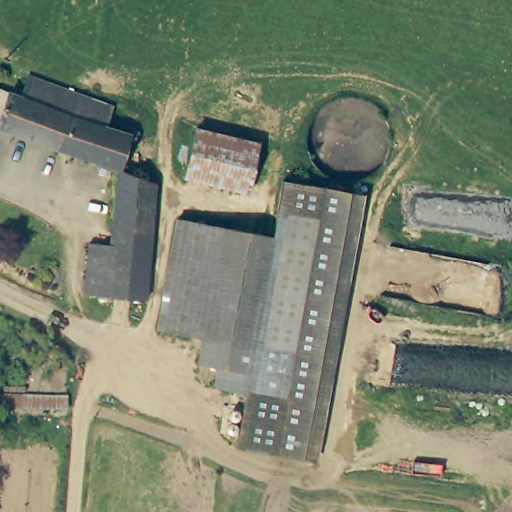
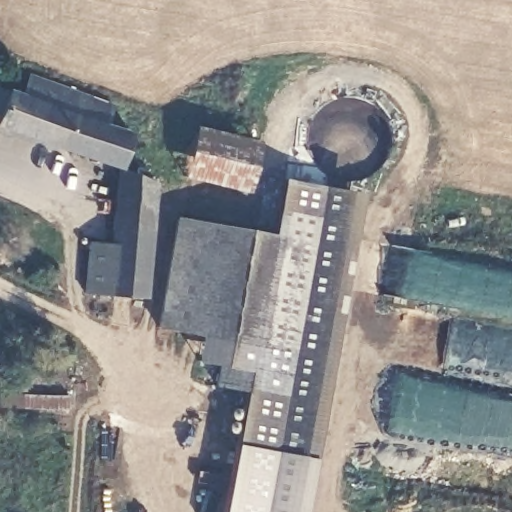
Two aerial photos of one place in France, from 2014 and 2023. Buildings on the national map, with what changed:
unchanged [(118,106),(116,116),(112,130),(133,138),(133,139),(121,168),(116,166),(91,158),(11,125),(0,120),(0,82),(10,86),(23,91),(31,70),(118,106)]
unchanged [(201,129),(263,143),(261,157),(256,180),(254,190),(193,177),(194,166),(199,139),(201,129)]
unchanged [(141,290),(86,286),(91,235),(111,236),(119,184),(119,180),(121,168),(140,172),(158,176),(155,230),(153,264),(151,291),(141,290)]
unchanged [(214,338),(171,330),(192,221),(288,240),(297,190),(298,184),(365,195),(363,207),(314,460),(248,447),(258,393),(227,387),(231,367),(210,363),(214,338)]
new [(235,445),(246,391),(258,393),(248,447),(314,460),(317,460),(308,512),(223,512),(235,445)]
unchanged [(54,418),(0,411),(0,393),(56,401),(54,418)]

